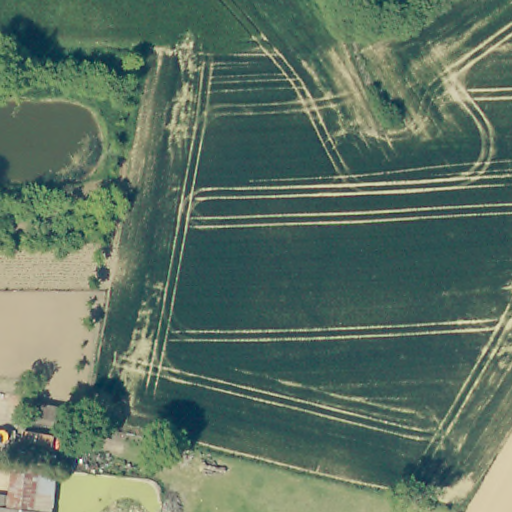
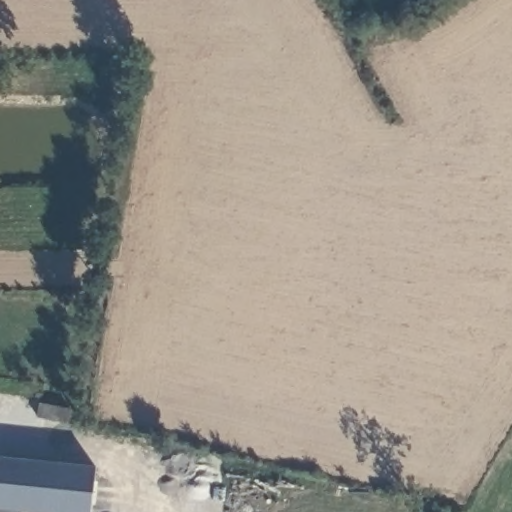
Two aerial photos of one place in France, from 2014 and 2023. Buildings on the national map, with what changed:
unchanged [(37,420),(40,405),(71,412),(70,425),(37,420)]
new [(0,512),(0,457),(95,467),(91,512),(0,512)]
demolished [(11,497),(14,465),(57,470),(53,512),(0,512),(0,496),(11,497)]

